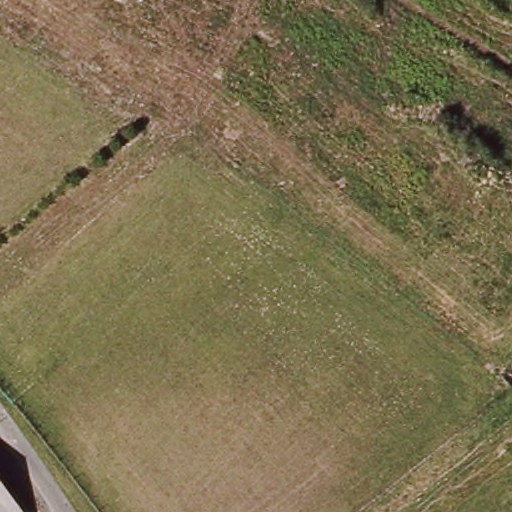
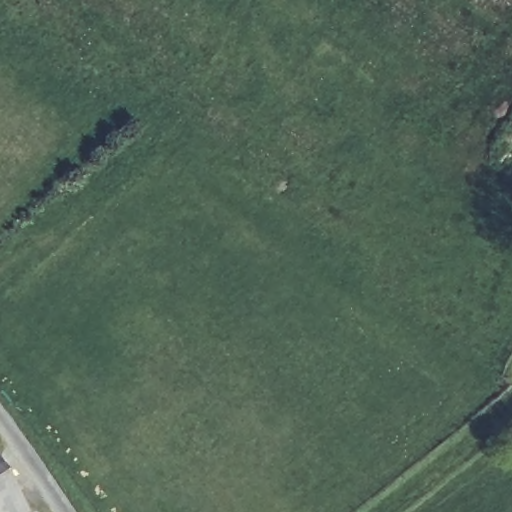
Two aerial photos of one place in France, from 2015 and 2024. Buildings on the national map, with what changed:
unchanged [(24,511),(22,512),(0,512),(0,474),(24,511)]

